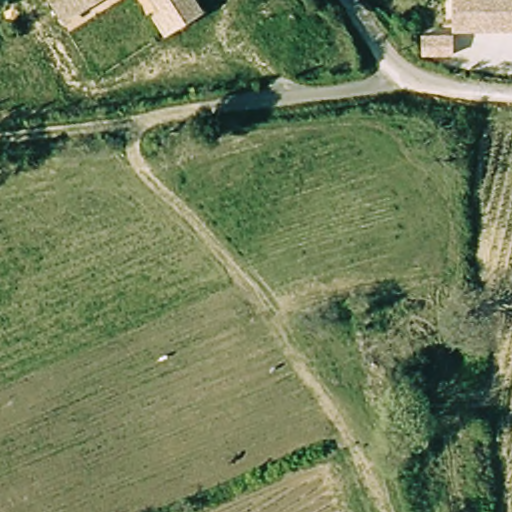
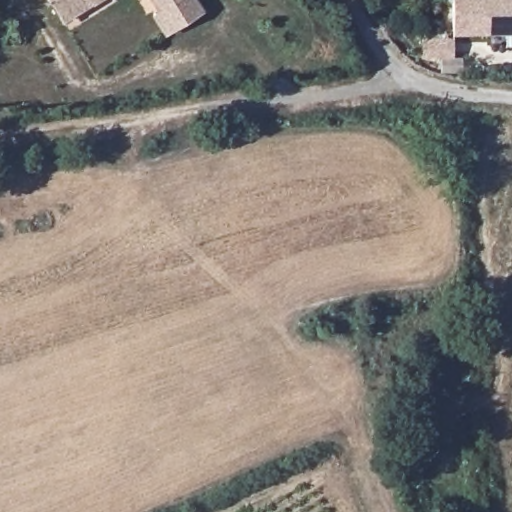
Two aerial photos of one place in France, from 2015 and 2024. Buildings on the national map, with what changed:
unchanged [(63,21),(50,0),(96,0),(92,2),(63,21)]
unchanged [(166,34),(152,14),(157,11),(151,0),(200,0),(206,9),(166,34)]
unchanged [(512,0),(512,35),(456,34),(456,0),(512,0)]

